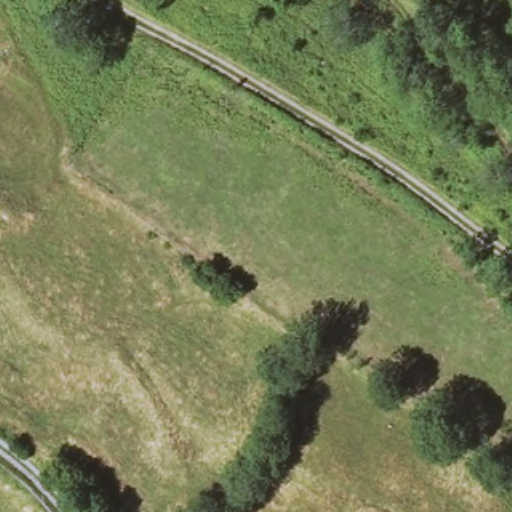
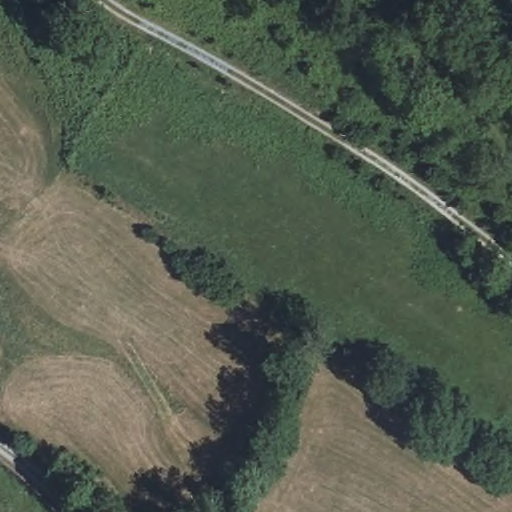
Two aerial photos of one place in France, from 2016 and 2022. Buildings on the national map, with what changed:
unchanged [(104,506),(116,496),(131,512),(96,512),(104,506)]

